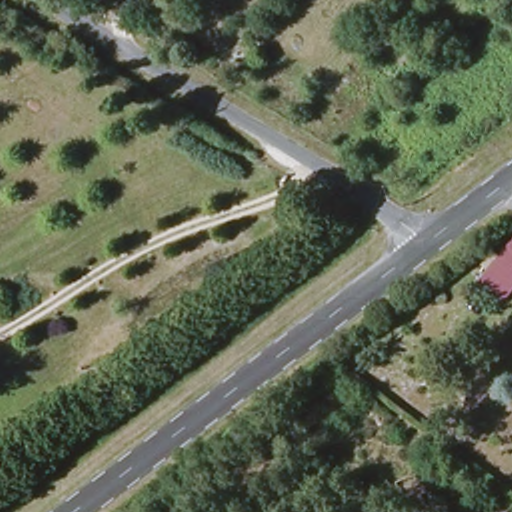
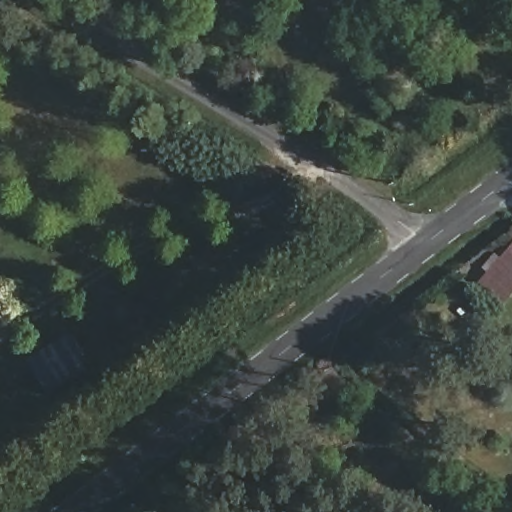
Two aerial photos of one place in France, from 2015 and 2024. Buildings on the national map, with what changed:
unchanged [(480,282),(512,244),(512,298),(507,304),(480,282)]

